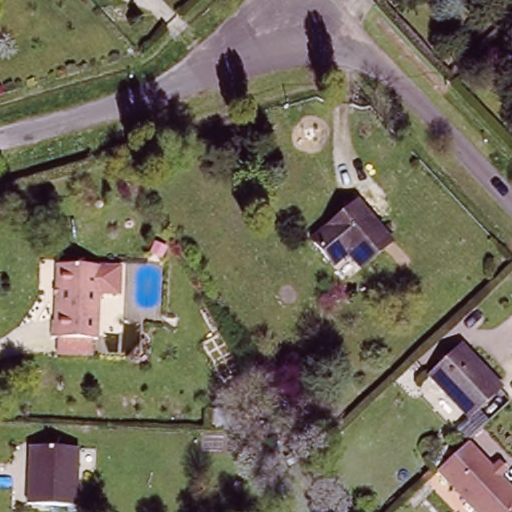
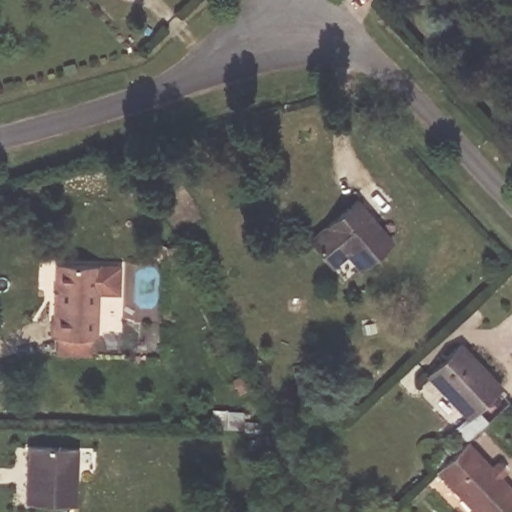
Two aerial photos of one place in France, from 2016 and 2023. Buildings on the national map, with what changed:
unchanged [(362,204),(396,244),(364,270),(355,258),(330,258),(316,242),(362,204)]
unchanged [(51,327),(53,271),(96,272),(93,345),(47,342),(48,327),(51,327)]
unchanged [(467,438),(456,427),(468,416),(428,372),(459,343),(501,387),(500,389),(510,400),(467,438)]
unchanged [(467,438),(512,487),(512,512),(477,512),(436,468),(467,438)]
unchanged [(75,455),(73,512),(40,512),(24,512),(26,453),(75,455)]

